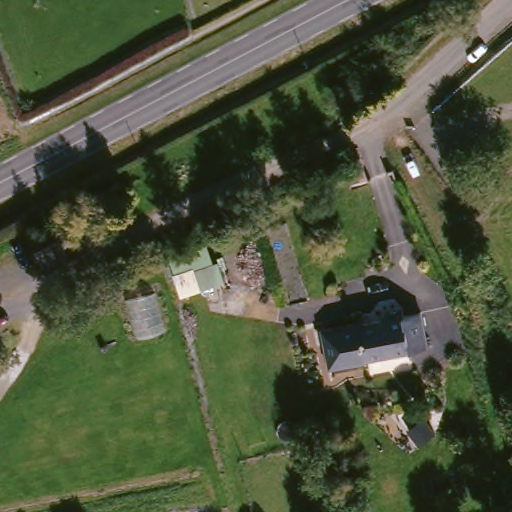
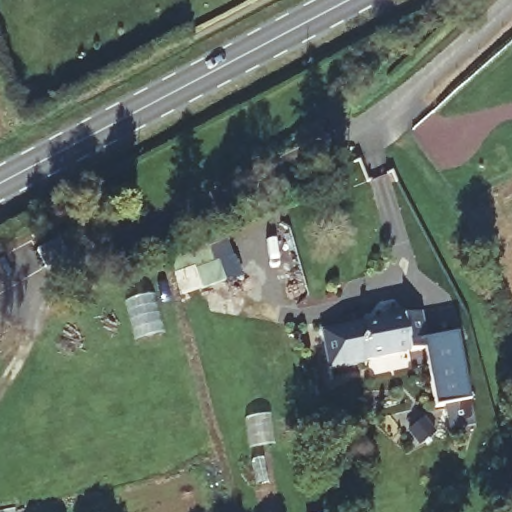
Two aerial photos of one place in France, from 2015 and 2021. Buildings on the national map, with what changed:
unchanged [(31,252),(20,236),(44,219),(55,235),(31,252)]
unchanged [(204,293),(184,297),(179,272),(199,268),(204,293)]
unchanged [(322,331),(362,322),(363,323),(372,321),(378,311),(398,307),(400,317),(420,312),(427,347),(330,368),(322,331)]
new [(457,336),(468,402),(435,407),(424,347),(427,347),(426,342),(457,336)]

